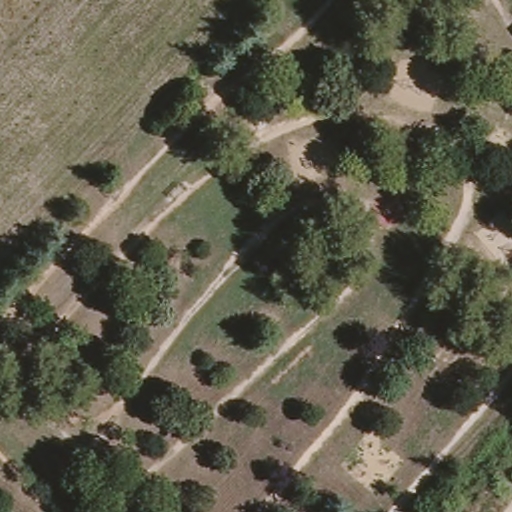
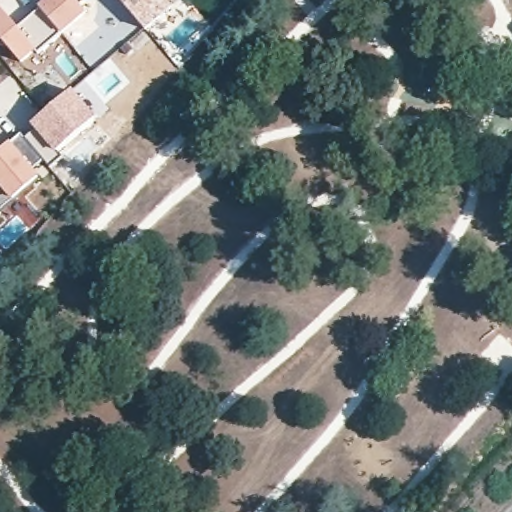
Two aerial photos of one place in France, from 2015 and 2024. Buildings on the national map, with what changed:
new [(50,0),(83,0),(79,3),(89,15),(63,37),(60,34),(39,10),(50,0)]
new [(175,11),(148,34),(120,0),(166,0),(175,11)]
new [(2,8),(18,26),(37,8),(60,34),(22,64),(0,38),(0,9),(2,8)]
new [(45,163),(41,166),(45,171),(0,211),(0,151),(22,134),(24,138),(33,130),(30,126),(73,89),(99,117),(58,156),(48,166),(45,163)]

